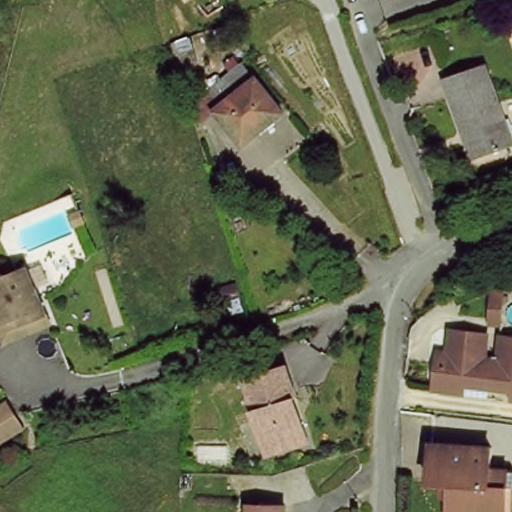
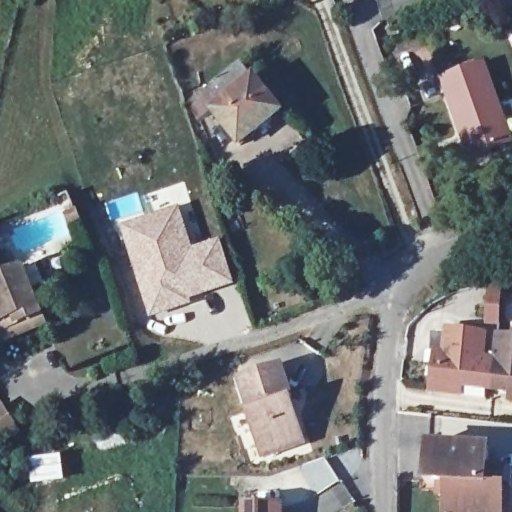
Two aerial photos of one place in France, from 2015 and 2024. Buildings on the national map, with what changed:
unchanged [(467,161),(442,83),(484,70),(509,147),(467,161)]
unchanged [(213,115),(257,79),(286,116),(242,147),(213,115)]
new [(180,205),(194,247),(221,239),(235,286),(214,293),(184,307),(148,319),(118,225),(180,205)]
unchanged [(0,339),(0,285),(30,275),(48,323),(0,339)]
unchanged [(474,391),(474,388),(465,387),(464,399),(444,397),(435,396),(437,369),(445,370),(450,334),(489,338),(487,361),(492,363),(489,393),(474,391)]
unchanged [(499,363),(502,339),(512,341),(512,391),(502,390),(502,394),(489,393),(492,363),(499,363)]
unchanged [(246,385),(286,373),(297,405),(287,407),(291,421),(302,425),(297,437),(302,452),(273,460),(264,432),(259,434),(253,417),(255,416),(246,385)]
unchanged [(0,445),(0,412),(15,437),(0,445)]
demolished [(215,445),(183,444),(184,427),(215,428),(215,445)]
unchanged [(512,470),(511,512),(444,512),(445,487),(424,486),(425,446),(487,449),(486,469),(512,470)]
unchanged [(286,507),(286,512),(248,512),(249,503),(286,507)]

